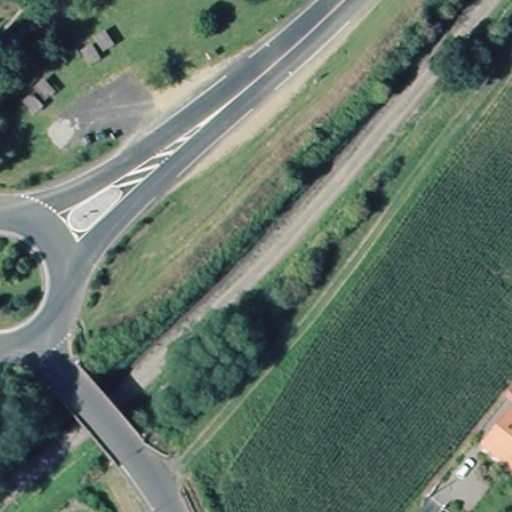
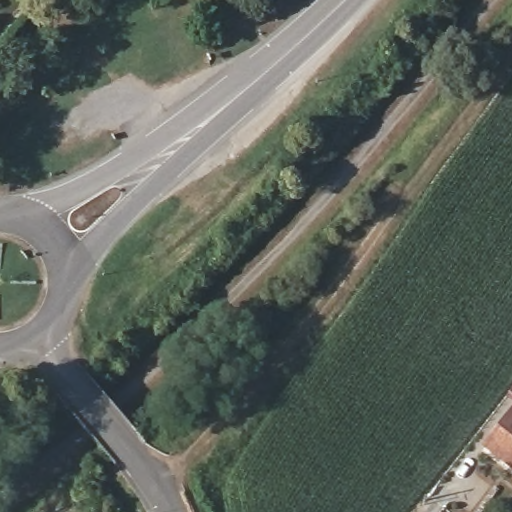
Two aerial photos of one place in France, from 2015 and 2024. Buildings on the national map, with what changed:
unchanged [(512,413),(512,474),(481,449),(512,413)]

